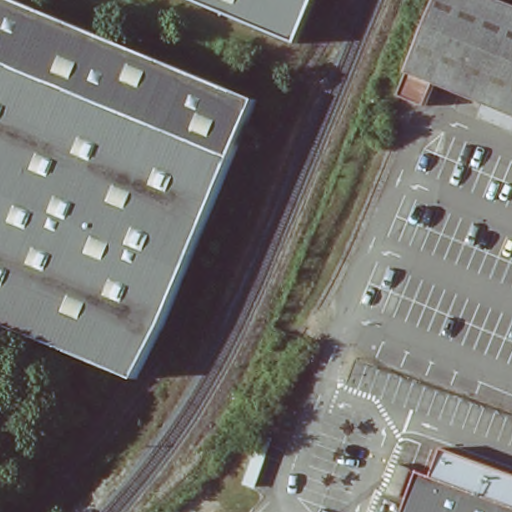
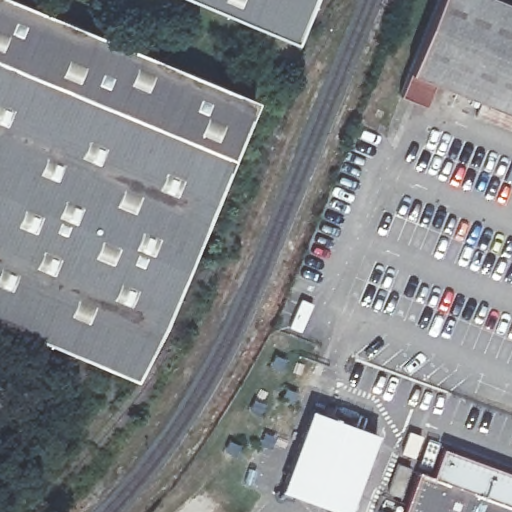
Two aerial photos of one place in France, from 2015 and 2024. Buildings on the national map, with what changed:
unchanged [(0,324),(0,0),(10,0),(249,100),(133,379),(0,324)]
unchanged [(193,0),(323,0),(303,45),(193,0)]
unchanged [(422,105),(397,95),(435,0),(499,0),(512,5),(512,116),(431,83),(422,105)]
new [(318,416),(384,440),(357,512),(335,512),(289,496),(318,416)]
unchanged [(414,470),(512,506),(512,512),(399,512),(414,470)]

